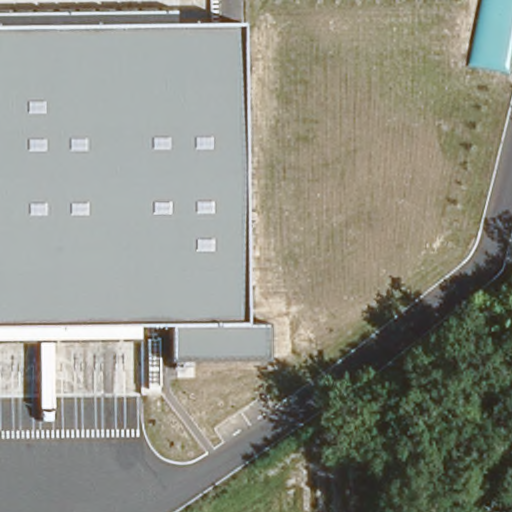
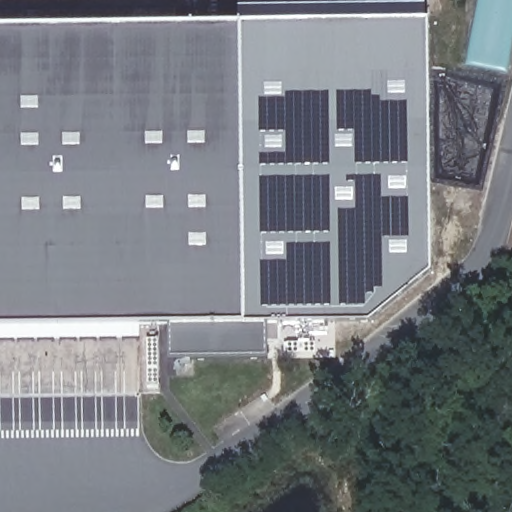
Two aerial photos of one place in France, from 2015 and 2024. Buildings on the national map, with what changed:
unchanged [(176,10),(176,23),(240,23),(244,324),(267,323),(267,360),(171,364),(171,323),(139,324),(139,340),(0,342),(0,13),(176,10)]
new [(247,22),(427,20),(430,174),(431,272),(369,323),(291,323),(265,323),(244,324),(240,23),(247,22)]

